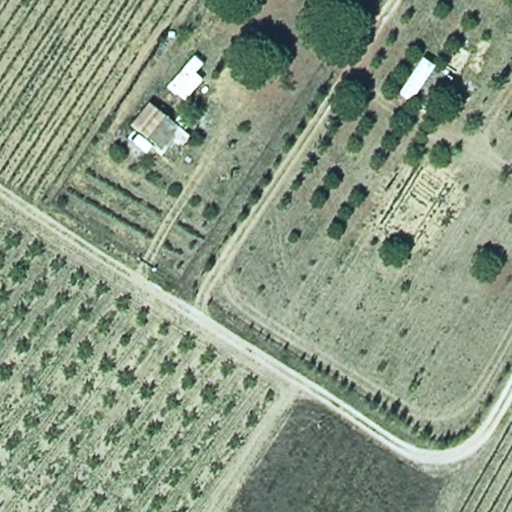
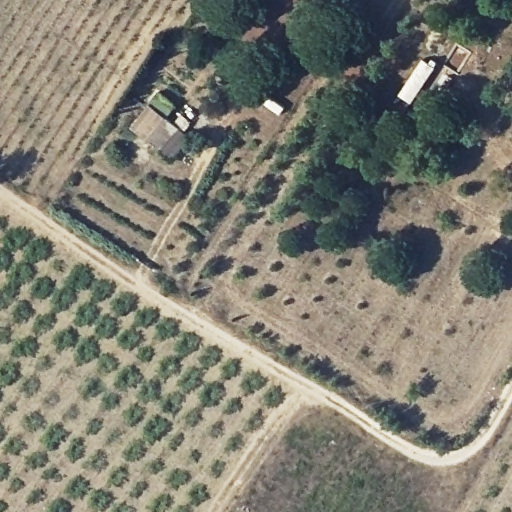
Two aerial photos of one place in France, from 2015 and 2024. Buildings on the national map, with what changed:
unchanged [(187,125),(162,151),(144,134),(165,106),(187,125)]

